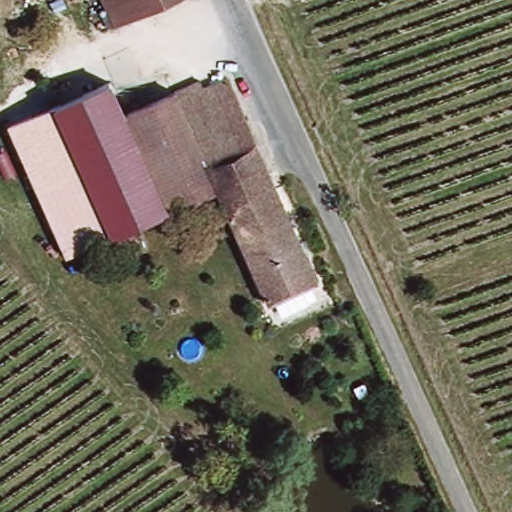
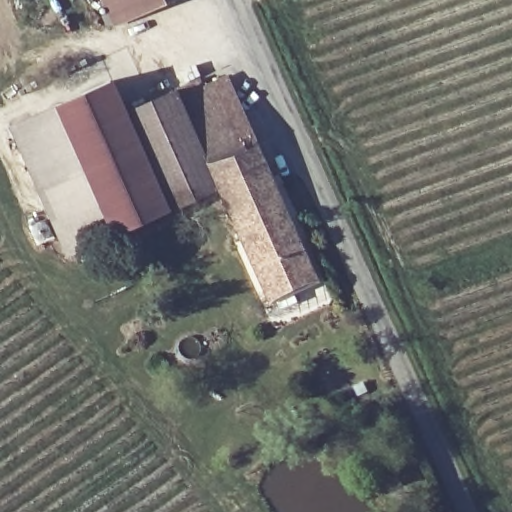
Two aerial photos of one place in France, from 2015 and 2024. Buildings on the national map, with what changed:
unchanged [(163,0),(125,19),(116,0),(163,0)]
unchanged [(199,76),(201,83),(224,72),(267,163),(216,186),(196,195),(150,98),(199,76)]
unchanged [(164,209),(66,257),(8,126),(107,81),(118,110),(164,209)]
unchanged [(118,110),(150,98),(196,195),(164,209),(118,110)]
unchanged [(321,272),(268,298),(216,186),(267,163),(321,272)]

